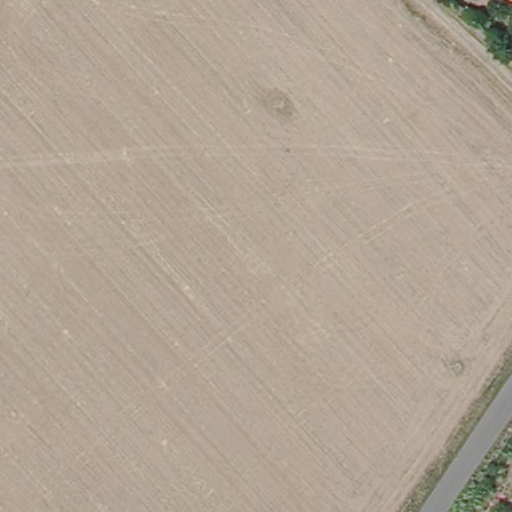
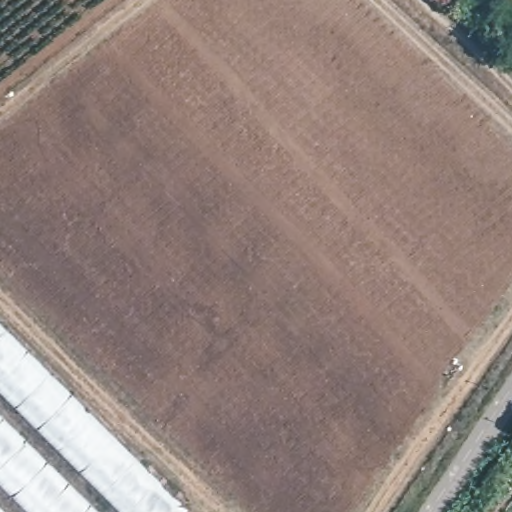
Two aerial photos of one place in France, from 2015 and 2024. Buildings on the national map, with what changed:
unchanged [(512,0),(512,6),(504,0),(512,0)]
new [(182,504),(174,512),(0,512),(0,323),(182,504)]

